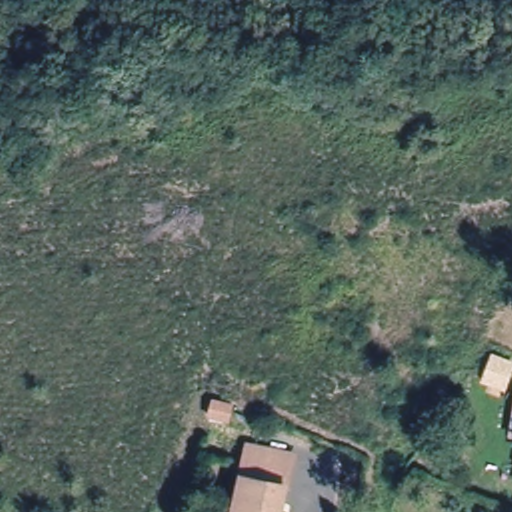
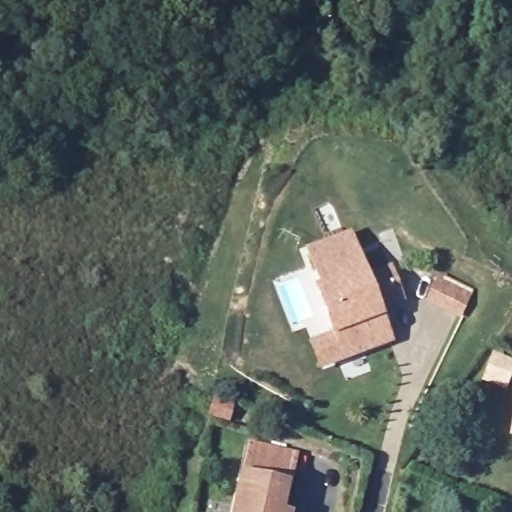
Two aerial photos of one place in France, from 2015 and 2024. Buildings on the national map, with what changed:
new [(329,335),(313,287),(318,285),(304,248),(351,231),(367,273),(391,265),(404,301),(381,312),(382,316),(393,343),(319,370),(307,342),(329,335)]
new [(438,275),(472,290),(460,318),(425,302),(438,275)]
unchanged [(255,448),(297,459),(285,512),(239,512),(255,448)]

